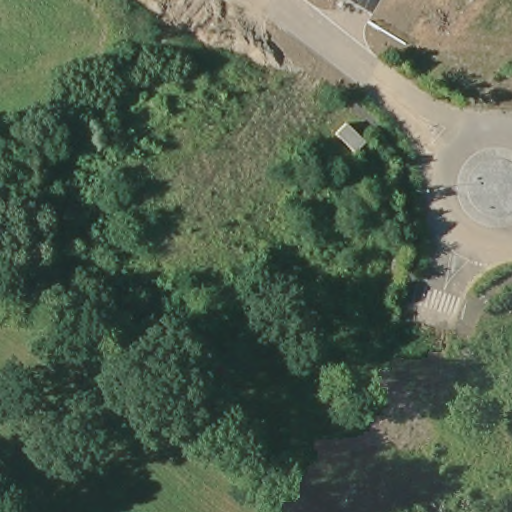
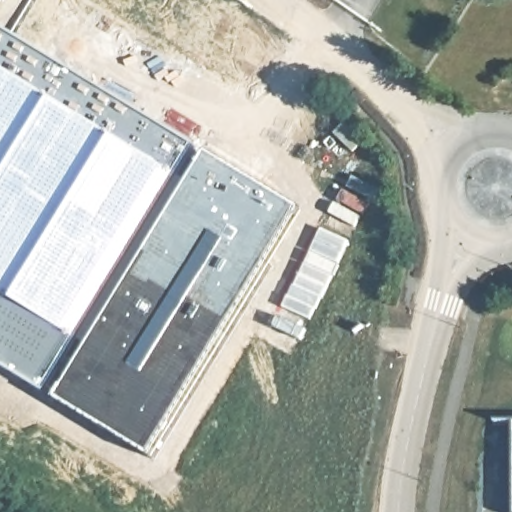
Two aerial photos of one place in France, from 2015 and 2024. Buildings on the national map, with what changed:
new [(177,174),(190,184),(206,159),(300,213),(153,463),(55,403),(47,394),(0,366),(0,33),(192,150),(177,174)]
new [(321,228),(349,241),(311,319),(282,305),(321,228)]

